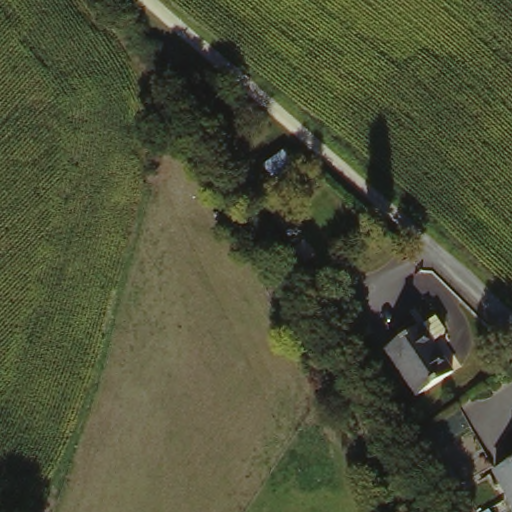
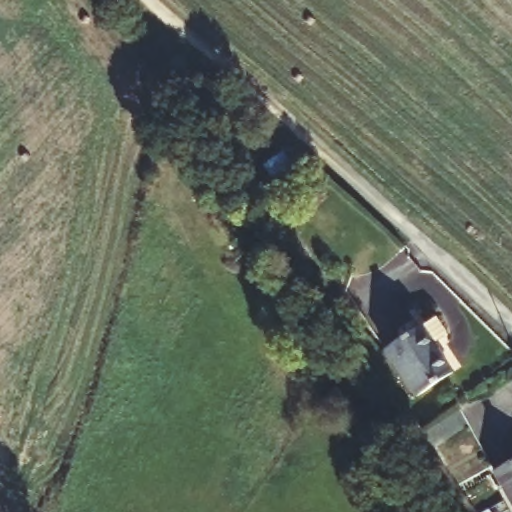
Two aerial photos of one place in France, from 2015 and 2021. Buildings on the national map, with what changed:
unchanged [(301,178),(278,191),(261,169),(283,155),(301,178)]
unchanged [(412,399),(385,361),(436,323),(447,337),(435,346),(450,370),(412,399)]
unchanged [(510,512),(487,475),(512,458),(512,512),(510,512)]

